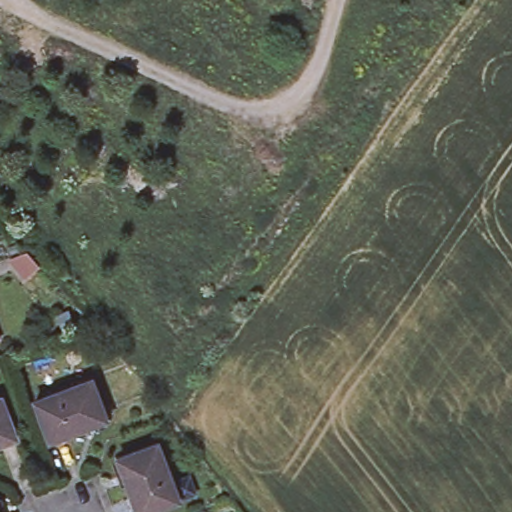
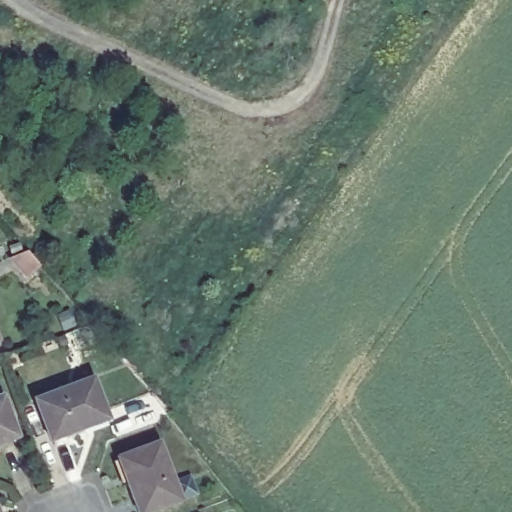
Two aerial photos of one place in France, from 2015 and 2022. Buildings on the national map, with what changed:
unchanged [(55,438),(40,399),(97,379),(111,418),(55,438)]
unchanged [(17,431),(0,438),(0,393),(3,392),(17,431)]
unchanged [(140,508),(119,453),(157,438),(178,493),(140,508)]
unchanged [(0,512),(0,510),(1,512),(0,512)]

